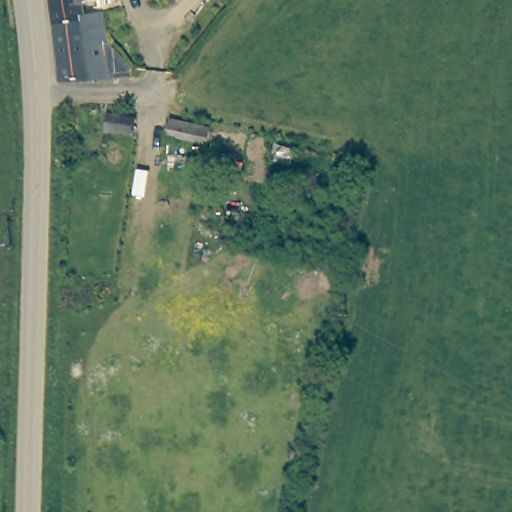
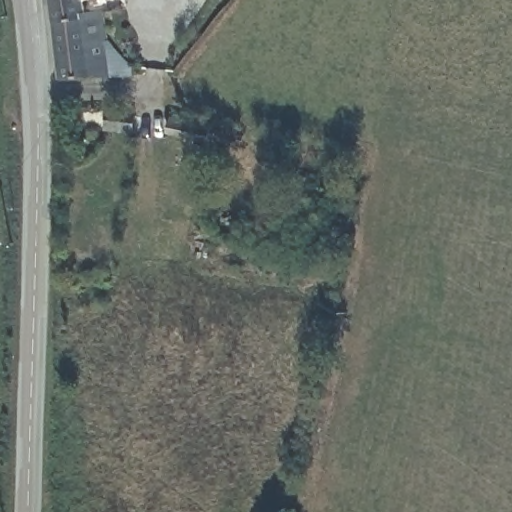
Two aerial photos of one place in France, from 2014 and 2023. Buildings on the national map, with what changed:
unchanged [(62,86),(56,27),(53,0),(103,0),(104,12),(106,33),(135,74),(110,78),(62,86)]
unchanged [(196,119),(193,136),(154,126),(157,111),(196,119)]

